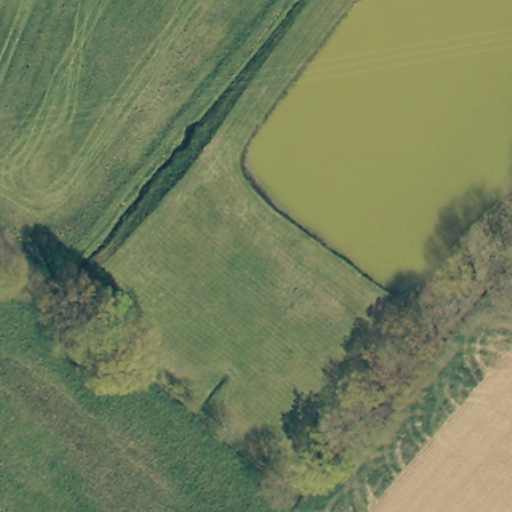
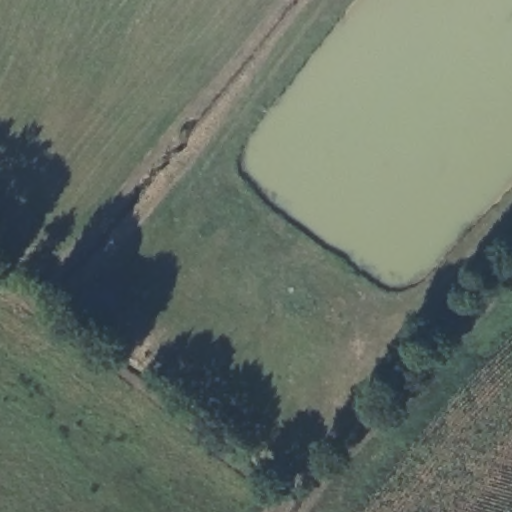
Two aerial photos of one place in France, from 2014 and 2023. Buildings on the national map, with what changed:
[]

